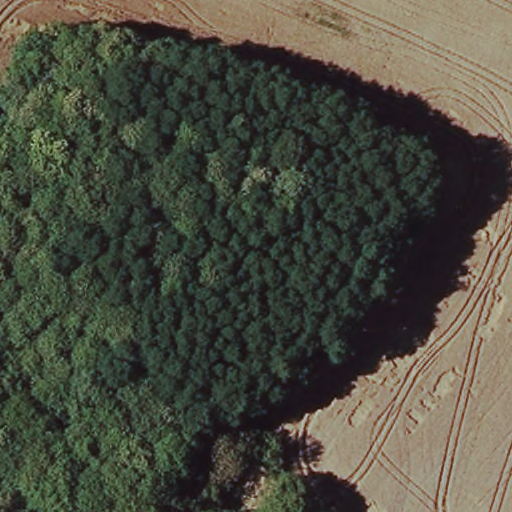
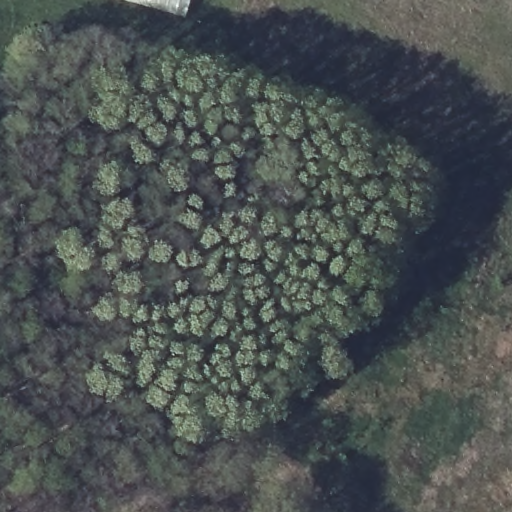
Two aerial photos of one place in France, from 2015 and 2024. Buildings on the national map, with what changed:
new [(140,4),(125,0),(190,0),(185,17),(140,4)]

